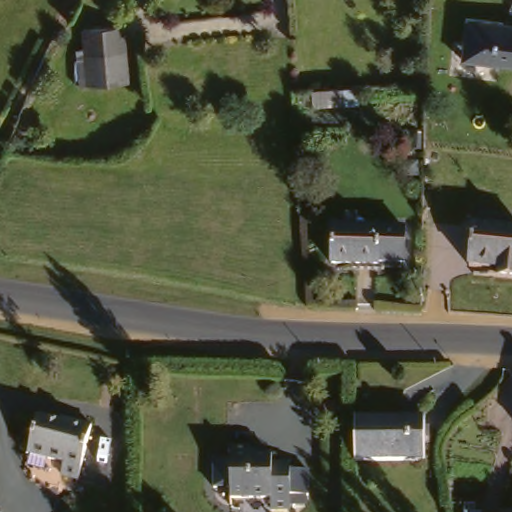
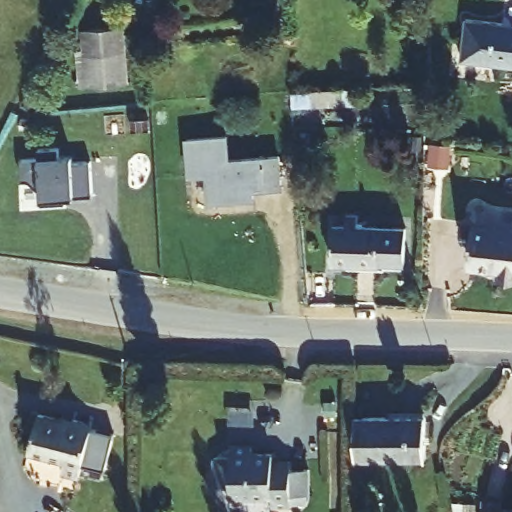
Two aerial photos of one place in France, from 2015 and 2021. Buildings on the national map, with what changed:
unchanged [(461,60),(466,20),(512,25),(512,66),(461,60)]
unchanged [(81,35),(118,35),(118,83),(81,84),(81,35)]
new [(226,136),(228,161),(278,155),(281,188),(261,189),(261,182),(251,183),(253,196),(211,200),(208,174),(189,177),(186,139),(226,136)]
new [(41,188),(28,181),(22,181),(21,160),(38,160),(38,149),(58,148),(59,159),(73,159),(73,164),(91,164),(91,198),(73,197),(73,199),(43,200),(41,188)]
unchanged [(331,235),(339,235),(340,226),(353,226),(353,234),(401,235),(401,269),(330,270),(331,235)]
unchanged [(512,232),(512,279),(491,279),(491,270),(464,269),(466,230),(512,232)]
unchanged [(34,418),(69,427),(71,422),(88,427),(74,481),(58,476),(61,464),(26,456),(34,418)]
unchanged [(351,426),(423,427),(422,466),(351,467),(351,426)]
unchanged [(264,509),(224,509),(224,499),(206,499),(205,471),(223,470),(223,458),(244,458),(244,466),(263,466),(264,474),(284,473),(284,480),(303,479),(303,504),(302,504),(302,512),(264,512),(264,509)]
unchanged [(500,509),(512,508),(512,512),(500,512),(500,509)]

